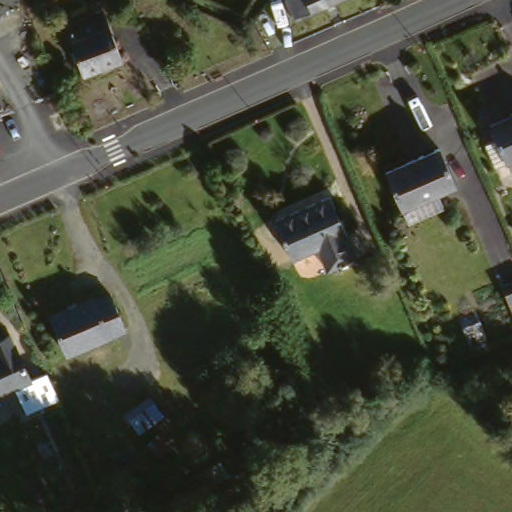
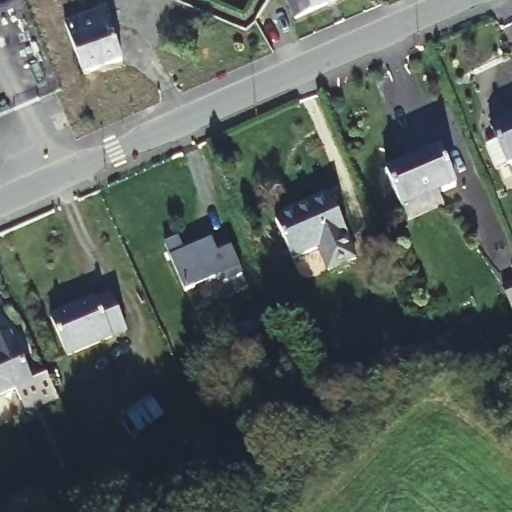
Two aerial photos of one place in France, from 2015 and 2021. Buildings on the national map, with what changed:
unchanged [(288,0),(324,0),(293,12),(288,0)]
unchanged [(69,24),(101,12),(108,29),(116,26),(126,60),(87,71),(69,24)]
unchanged [(491,129),(512,119),(512,161),(507,162),(491,129)]
unchanged [(384,167),(438,146),(456,185),(437,191),(442,204),(406,217),(384,167)]
unchanged [(275,217),(331,194),(346,235),(343,236),(356,262),(334,270),(323,246),(294,257),(275,217)]
new [(179,240),(185,254),(213,242),(220,258),(234,252),(245,280),(226,287),(224,280),(188,295),(166,245),(179,240)]
unchanged [(506,287),(512,285),(512,304),(506,287)]
unchanged [(51,312),(95,293),(98,299),(112,293),(126,326),(69,350),(51,312)]
unchanged [(10,383),(0,388),(0,332),(8,328),(31,373),(44,370),(56,396),(24,410),(10,383)]

